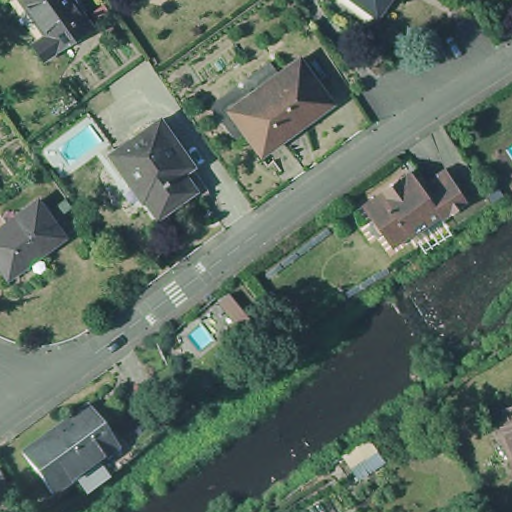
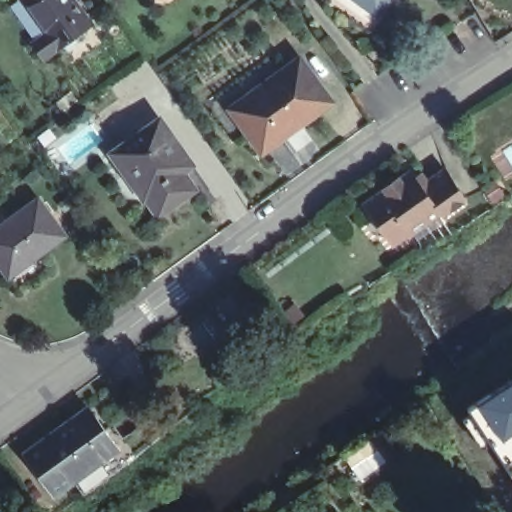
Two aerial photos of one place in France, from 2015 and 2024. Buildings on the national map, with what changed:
unchanged [(53,27),(33,0),(84,0),(98,19),(68,41),(50,54),(38,38),(53,27)]
unchanged [(168,0),(176,0),(170,4),(168,0)]
unchanged [(370,0),(387,0),(381,7),(370,0)]
unchanged [(310,57),(341,101),(270,152),(254,131),(238,109),(288,72),(310,57)]
unchanged [(238,109),(254,131),(243,139),(221,110),(223,101),(280,60),(288,72),(238,109)]
unchanged [(196,159),(186,167),(197,185),(162,211),(150,195),(147,197),(113,150),(163,112),(196,159)]
unchanged [(368,199),(417,164),(430,184),(452,169),(471,197),(448,213),(444,206),(395,240),(368,199)]
unchanged [(42,247),(40,243),(8,266),(0,256),(0,222),(41,191),(67,228),(42,247)]
unchanged [(79,243),(23,285),(8,266),(40,243),(42,247),(67,228),(79,243)]
new [(512,436),(498,444),(473,405),(512,379),(512,436)]
unchanged [(54,485),(25,443),(90,397),(104,418),(118,439),(72,472),(54,485)]
demolished [(505,418),(498,404),(512,399),(512,462),(495,423),(505,418)]
unchanged [(118,439),(104,418),(113,412),(136,446),(82,486),(72,472),(118,439)]
unchanged [(342,452),(360,438),(364,444),(369,451),(350,464),(346,458),(342,452)]

